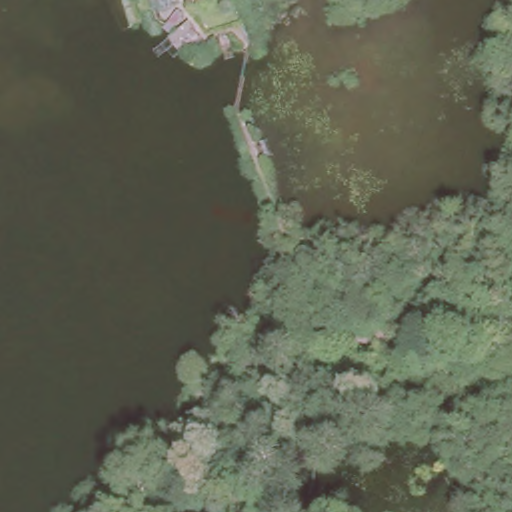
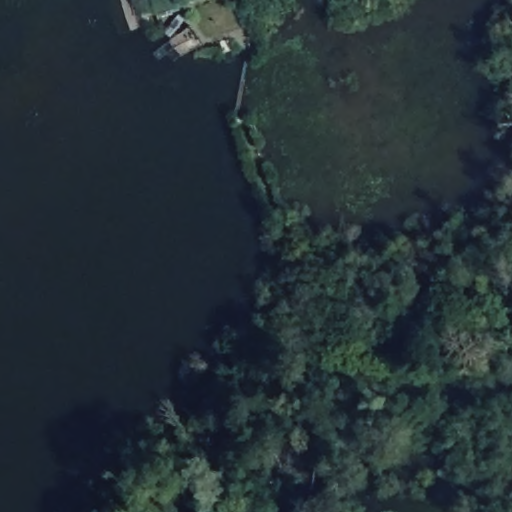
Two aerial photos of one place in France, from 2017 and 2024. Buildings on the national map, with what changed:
unchanged [(139,0),(184,0),(149,19),(139,0)]

